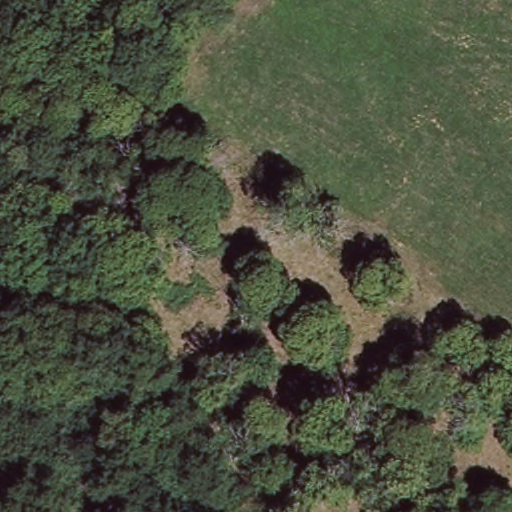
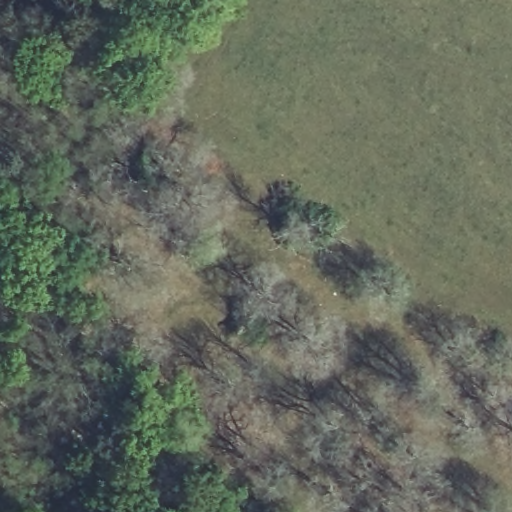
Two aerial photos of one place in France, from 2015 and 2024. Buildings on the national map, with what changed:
[]

